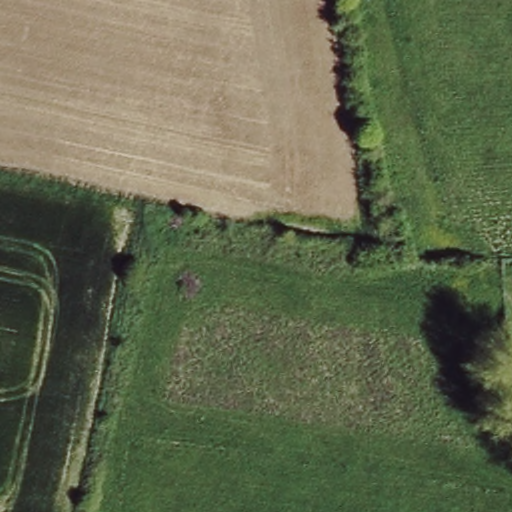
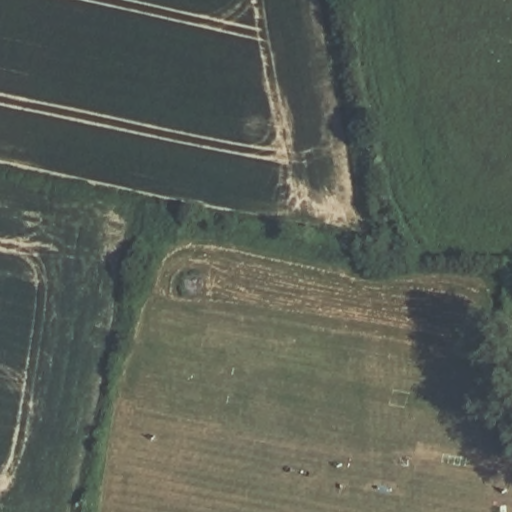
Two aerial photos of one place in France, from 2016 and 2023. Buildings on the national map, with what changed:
[]

